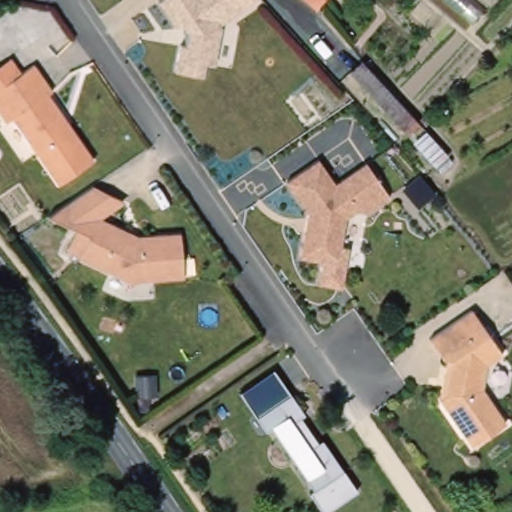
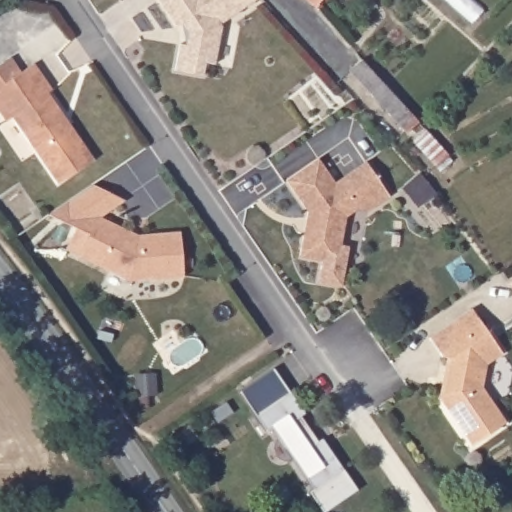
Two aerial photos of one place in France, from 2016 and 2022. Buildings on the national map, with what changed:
unchanged [(222,26),(224,29),(217,67),(207,65),(205,78),(178,72),(183,46),(189,48),(191,35),(184,25),(179,29),(161,2),(165,0),(261,0),(222,26)]
unchanged [(314,7),(307,0),(321,0),(314,7)]
unchanged [(417,121),(405,132),(348,70),(361,59),(417,121)]
unchanged [(52,95),(48,98),(93,164),(57,188),(12,122),(6,126),(0,118),(0,92),(33,69),(52,95)]
unchanged [(448,155),(435,166),(412,140),(425,129),(448,155)]
unchanged [(323,262),(298,257),(306,212),(285,181),(317,159),(333,184),(365,163),(388,197),(366,212),(355,210),(345,218),(339,247),(336,264),(323,262)]
unchanged [(436,191),(421,202),(406,182),(421,171),(436,191)]
unchanged [(183,279),(128,283),(78,259),(78,258),(65,251),(71,239),(84,246),(97,219),(127,233),(137,238),(180,234),(183,279)]
unchanged [(439,357),(426,338),(469,310),(500,355),(483,366),(479,389),(502,424),(468,447),(436,399),(444,358),(439,357)]
unchanged [(322,512),(309,493),(312,491),(291,462),(285,465),(276,466),(270,463),(267,454),(271,445),(279,439),(269,426),(264,430),(240,391),(271,369),(303,413),(299,416),(317,441),(321,438),(355,490),(325,512),(322,512)]

